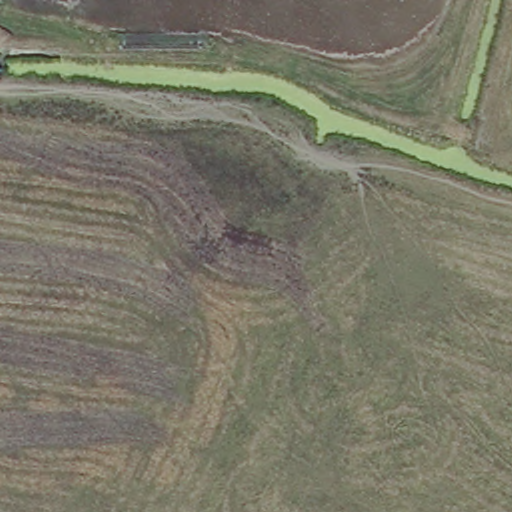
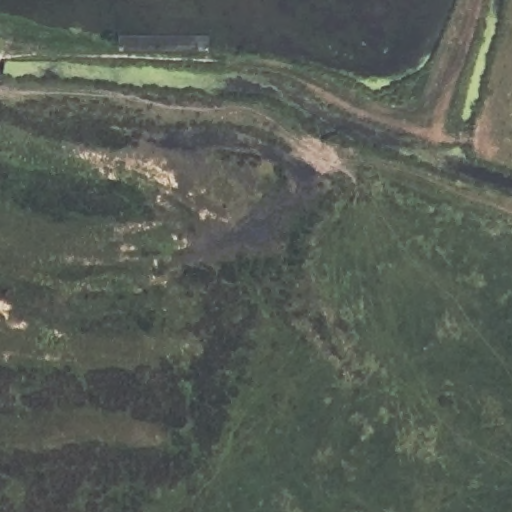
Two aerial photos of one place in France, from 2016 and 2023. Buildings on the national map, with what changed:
unchanged [(0,29),(11,35),(0,57),(0,29)]

